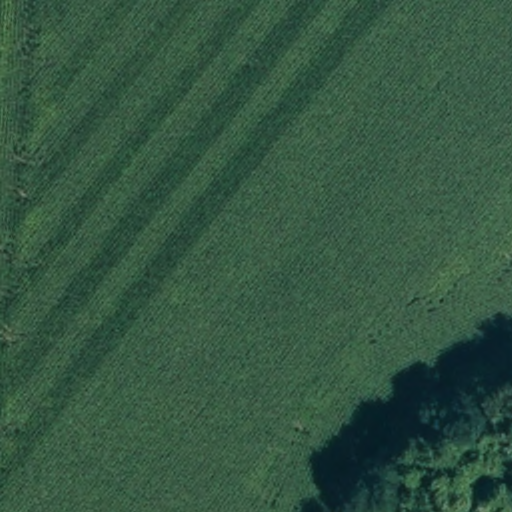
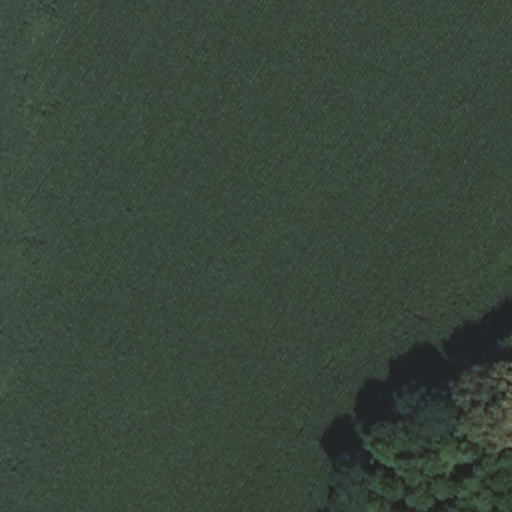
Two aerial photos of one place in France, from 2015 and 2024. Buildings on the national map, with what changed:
[]

